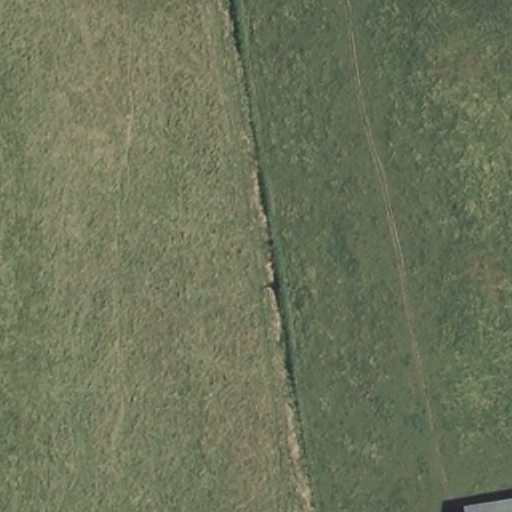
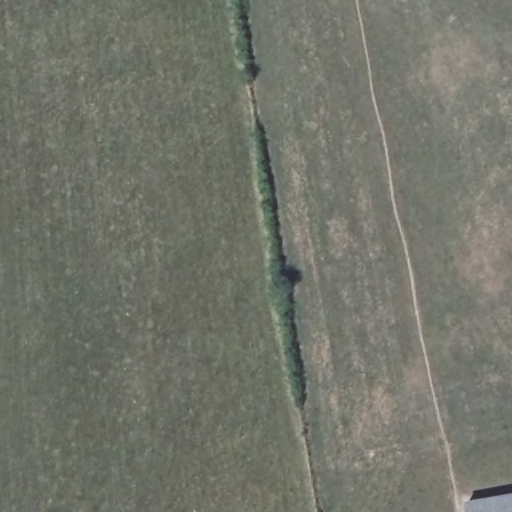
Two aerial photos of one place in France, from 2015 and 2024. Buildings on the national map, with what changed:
unchanged [(468,505),(512,499),(512,512),(469,512),(468,505)]

